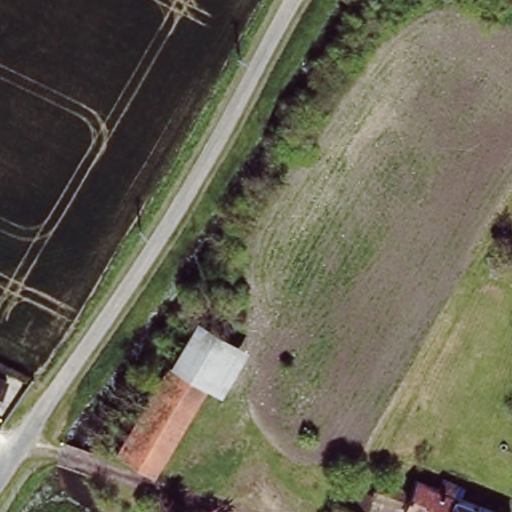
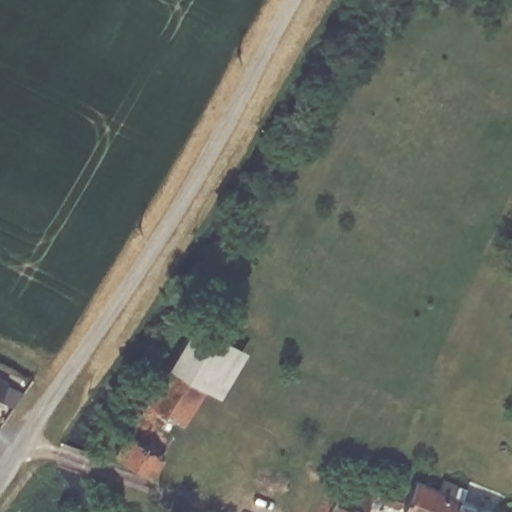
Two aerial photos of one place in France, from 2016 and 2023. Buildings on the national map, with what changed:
unchanged [(175,360),(201,317),(251,348),(225,391),(210,381),(175,360)]
unchanged [(210,381),(158,466),(123,444),(175,360),(210,381)]
unchanged [(0,393),(0,374),(8,379),(0,393)]
unchanged [(371,496),(377,482),(402,492),(396,509),(373,501),(369,512),(331,512),(342,485),(371,496)]
unchanged [(414,482),(438,491),(442,482),(455,487),(451,497),(490,512),(403,512),(402,512),(414,482)]

